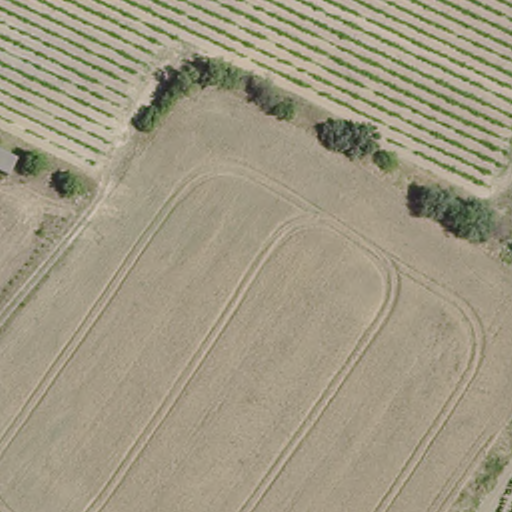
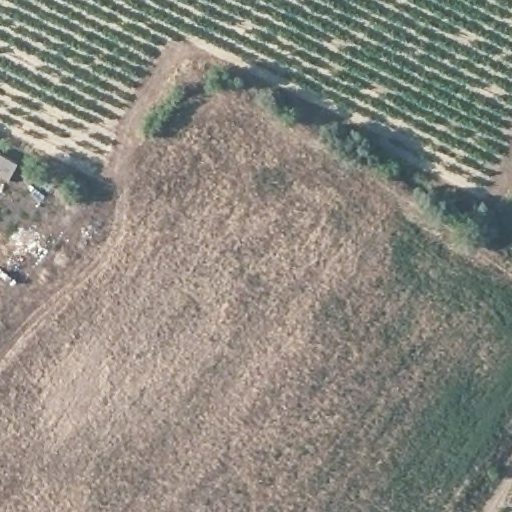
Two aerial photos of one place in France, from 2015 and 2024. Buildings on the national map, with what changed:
unchanged [(11,179),(0,173),(0,148),(20,161),(11,179)]

